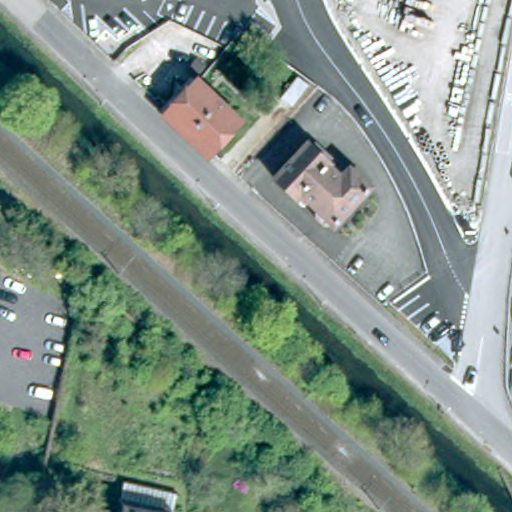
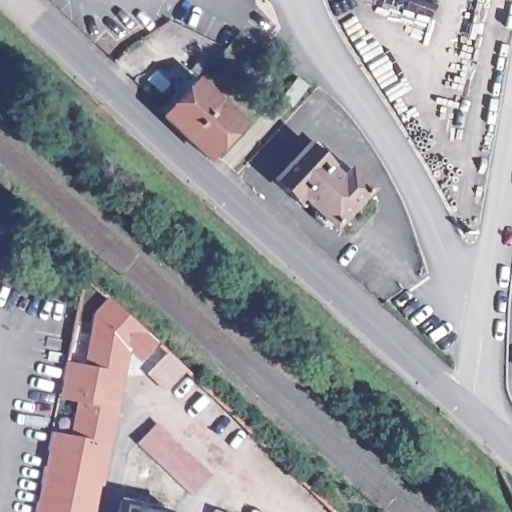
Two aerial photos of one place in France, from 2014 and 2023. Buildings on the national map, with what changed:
unchanged [(242,120),(212,152),(209,155),(164,112),(167,109),(196,77),(242,120)]
unchanged [(297,202),(275,181),(306,147),(308,149),(314,144),(342,170),(345,169),(354,178),(356,177),(368,190),(334,227),(323,227),(315,220),(315,213),(308,205),(303,210),(297,202)]
new [(72,384),(60,381),(64,364),(83,368),(94,316),(107,301),(155,344),(140,360),(133,353),(126,352),(121,377),(120,377),(117,392),(112,390),(108,410),(113,410),(98,481),(56,473),(60,455),(45,452),(49,435),(69,438),(76,404),(68,402),(57,400),(61,382),(72,384)]
new [(97,512),(37,512),(50,453),(60,455),(56,473),(98,481),(104,481),(97,512)]
unchanged [(171,495),(168,512),(114,512),(119,485),(147,490),(171,495)]

